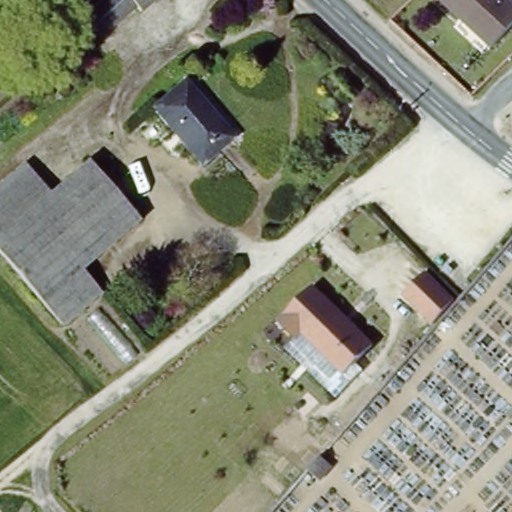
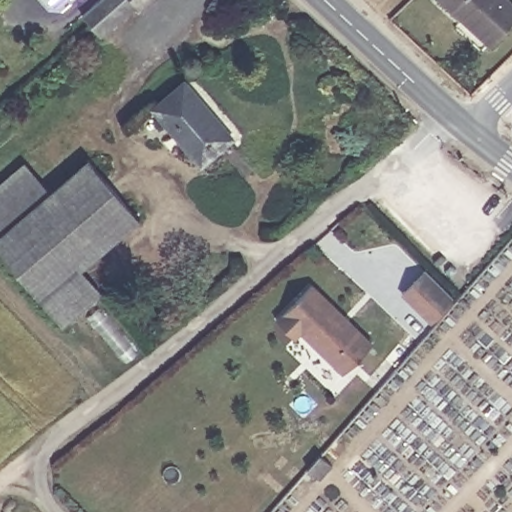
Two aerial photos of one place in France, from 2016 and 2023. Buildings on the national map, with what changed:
unchanged [(138,20),(132,13),(97,44),(79,24),(107,0),(160,0),(138,20)]
unchanged [(433,0),(499,0),(512,12),(512,30),(488,54),(432,2),(433,0)]
unchanged [(151,107),(185,82),(202,98),(197,101),(166,128),(151,107)]
unchanged [(233,144),(202,170),(166,128),(197,101),(233,144)]
unchanged [(135,223),(80,269),(40,304),(0,256),(0,241),(50,198),(87,167),(135,223)]
unchanged [(50,198),(0,241),(0,190),(25,169),(50,198)]
unchanged [(80,269),(101,293),(60,328),(40,304),(80,269)]
unchanged [(425,271),(455,300),(432,325),(401,295),(425,271)]
unchanged [(297,339),(276,319),(314,283),(374,344),(342,375),(302,334),(297,339)]

